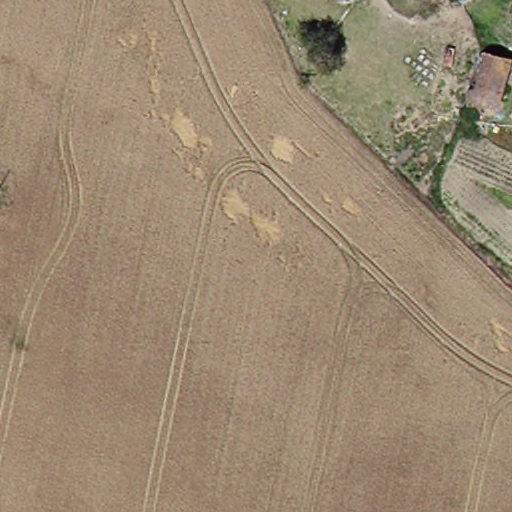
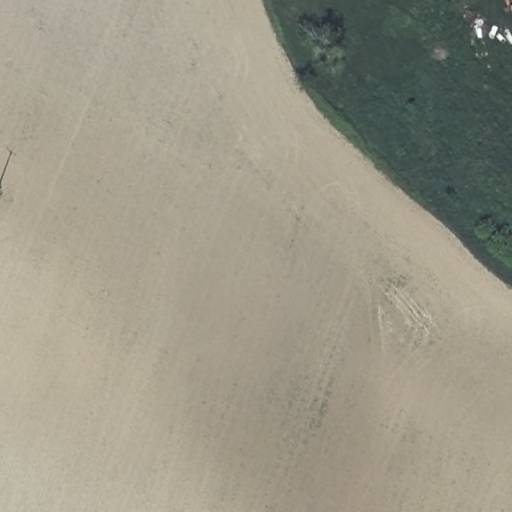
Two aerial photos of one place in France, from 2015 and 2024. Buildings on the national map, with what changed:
demolished [(512,62),(512,92),(505,114),(468,103),(483,52),(512,62)]
new [(488,121),(474,115),(483,100),(495,106),(488,121)]

